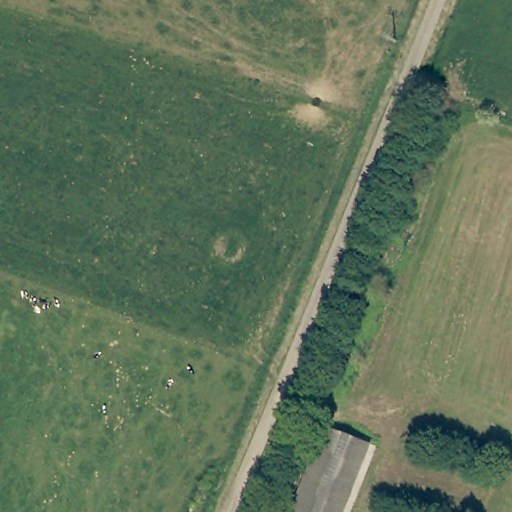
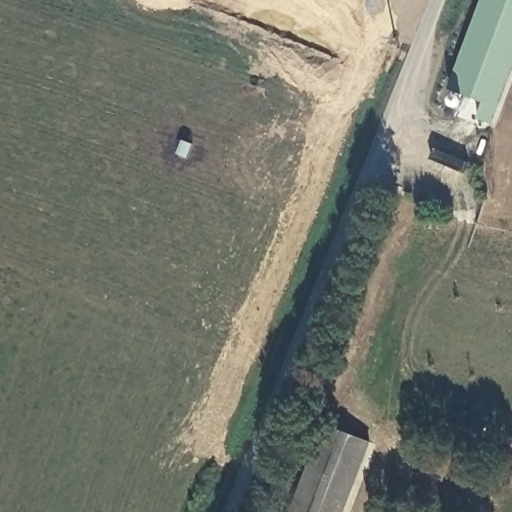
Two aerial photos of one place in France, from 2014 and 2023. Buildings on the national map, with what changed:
new [(475,120),(481,102),(447,90),(481,0),(512,0),(512,76),(493,126),(475,120)]
unchanged [(343,512),(294,512),(325,430),(368,444),(343,512)]

